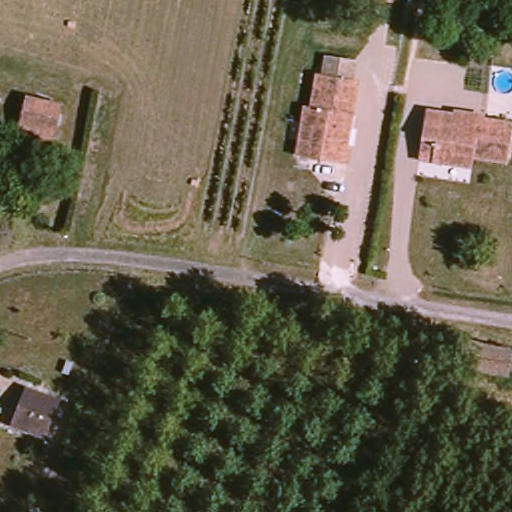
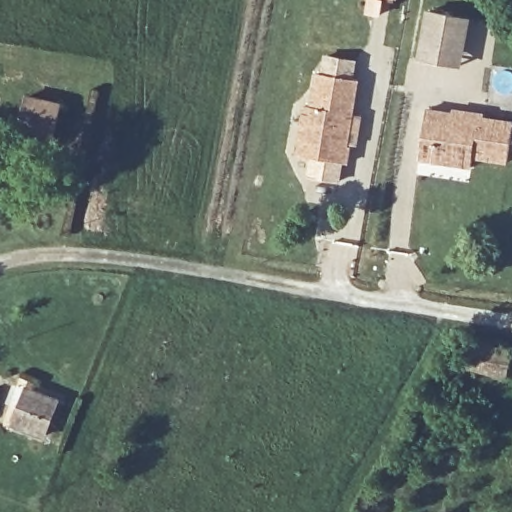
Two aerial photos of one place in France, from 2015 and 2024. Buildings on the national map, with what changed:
new [(427,9),(471,17),(462,67),(418,59),(427,9)]
unchanged [(349,145),(346,163),(294,155),(301,107),(309,108),(313,73),(355,79),(350,115),(346,144),(349,145)]
unchanged [(14,136),(16,125),(26,98),(60,109),(51,137),(48,147),(14,136)]
unchanged [(417,140),(421,110),(447,114),(448,110),(477,114),(477,118),(507,121),(503,161),(467,158),(466,168),(428,163),(414,162),(417,140)]
unchanged [(505,375),(460,369),(463,346),(509,352),(505,375)]
unchanged [(55,398),(42,434),(11,423),(25,388),(55,398)]

